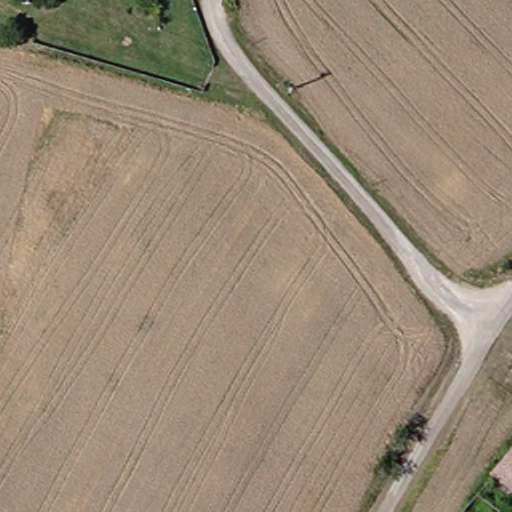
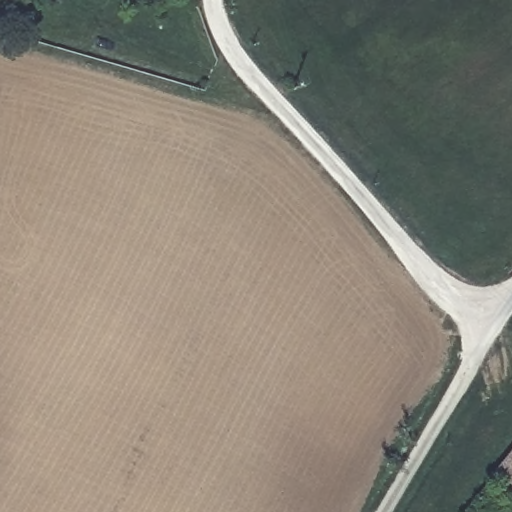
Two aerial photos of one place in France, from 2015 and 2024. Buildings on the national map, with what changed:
unchanged [(512,448),(512,491),(490,474),(512,448)]

